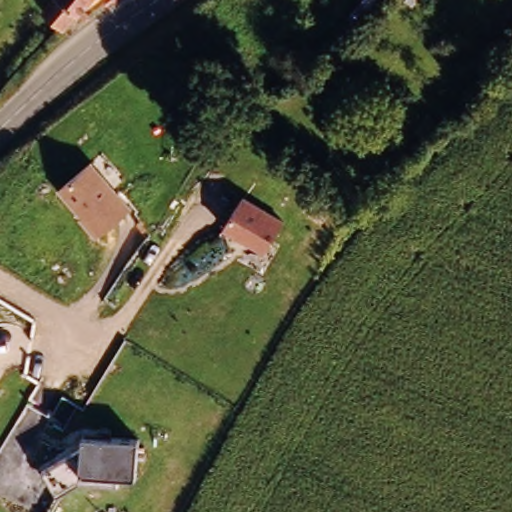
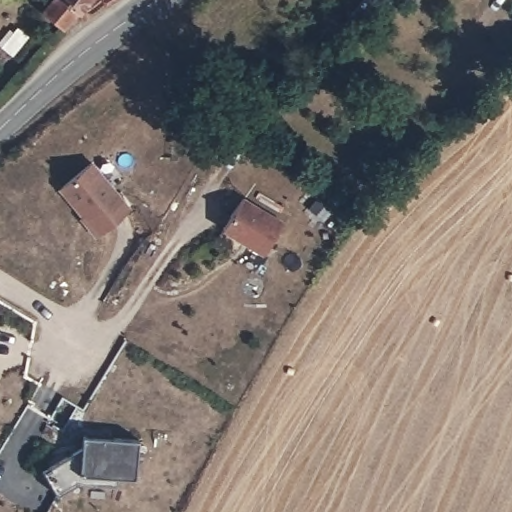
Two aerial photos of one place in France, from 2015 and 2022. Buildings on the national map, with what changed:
unchanged [(59,30),(39,14),(50,0),(84,0),(82,2),(59,30)]
unchanged [(375,19),(368,24),(358,16),(369,0),(391,0),(397,5),(384,25),(375,19)]
unchanged [(133,208),(99,237),(58,188),(92,157),(133,208)]
unchanged [(287,220),(267,256),(223,231),(245,194),(287,220)]
unchanged [(86,433),(140,438),(137,478),(124,477),(122,483),(82,480),(59,496),(45,469),(85,445),(86,433)]

